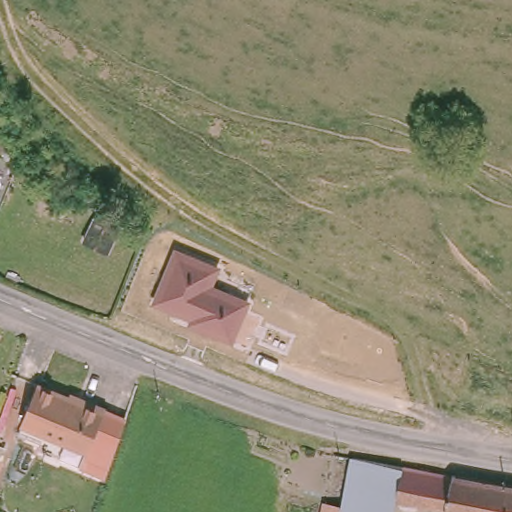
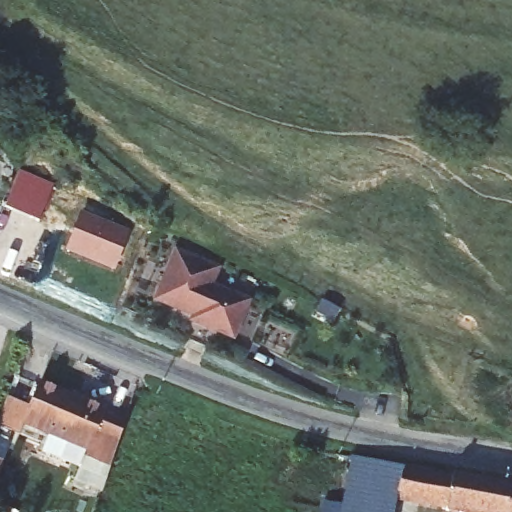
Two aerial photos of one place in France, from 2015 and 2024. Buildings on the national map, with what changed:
new [(40,221),(5,206),(20,170),(53,184),(40,221)]
new [(114,272),(64,251),(81,208),(131,229),(114,272)]
demolished [(93,214),(119,227),(107,250),(81,240),(93,214)]
unchanged [(217,267),(210,284),(248,302),(232,338),(191,321),(192,316),(155,301),(175,251),(217,267)]
new [(340,308),(333,320),(320,312),(328,300),(340,308)]
unchanged [(37,382),(70,393),(71,391),(105,407),(87,453),(21,425),(37,382)]
unchanged [(128,414),(106,482),(81,471),(87,453),(105,407),(128,414)]
unchanged [(403,502),(402,486),(381,482),(374,512),(320,512),(333,448),(342,451),(342,452),(345,453),(512,484),(512,512),(458,512),(403,502)]

